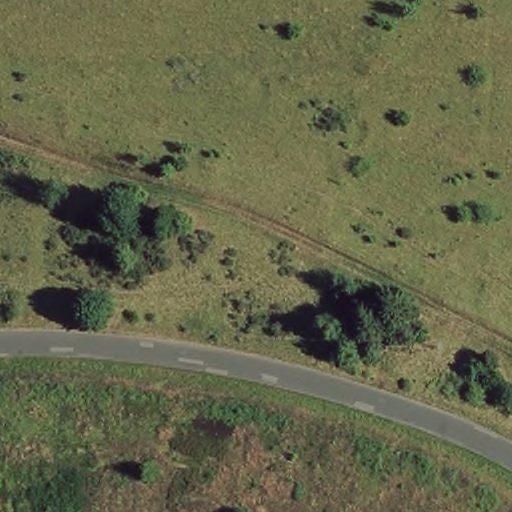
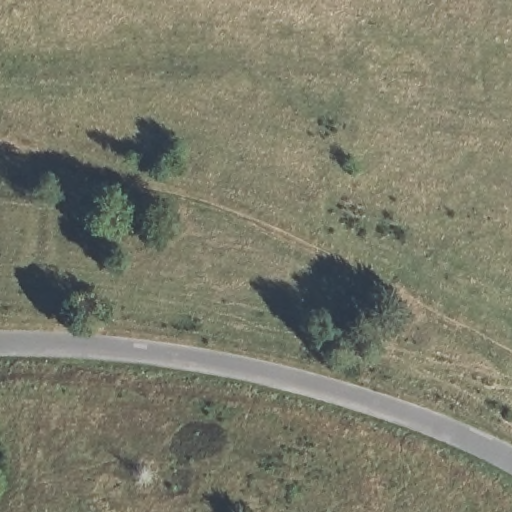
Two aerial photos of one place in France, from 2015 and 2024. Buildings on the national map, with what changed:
[]

